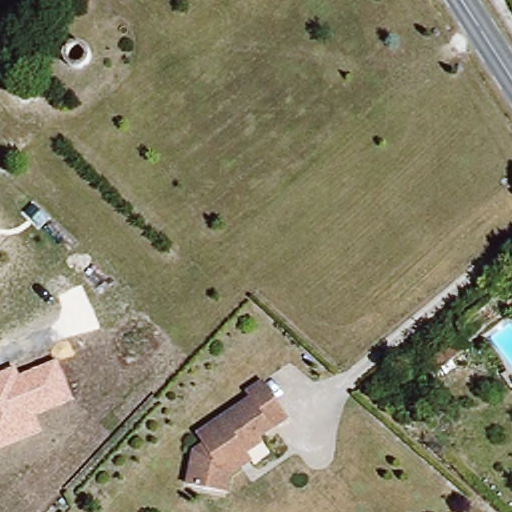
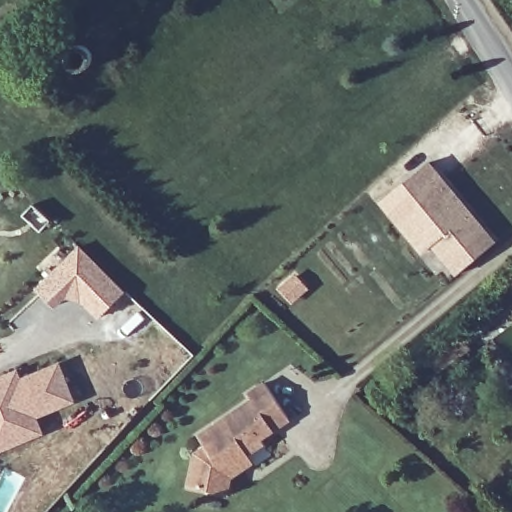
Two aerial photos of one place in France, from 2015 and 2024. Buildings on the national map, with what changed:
new [(497,240),(456,275),(433,246),(422,254),(379,202),(430,160),(497,240)]
new [(125,291),(100,316),(71,288),(55,305),(39,289),(79,246),(125,291)]
unchanged [(21,380),(60,363),(75,401),(37,416),(44,434),(0,452),(0,379),(17,372),(21,380)]
unchanged [(226,482),(225,498),(210,496),(186,493),(190,460),(200,451),(194,443),(244,403),(238,395),(255,383),(281,420),(252,441),(255,445),(240,457),(247,466),(226,482)]

